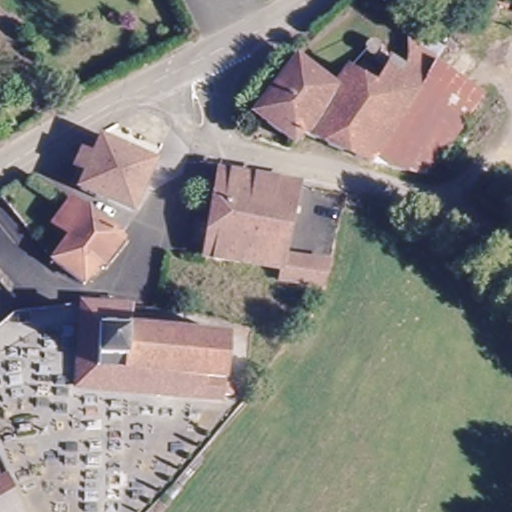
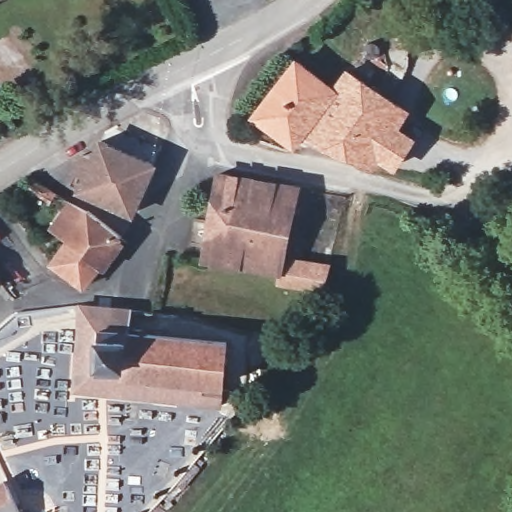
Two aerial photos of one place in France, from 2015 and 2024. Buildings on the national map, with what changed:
unchanged [(372,160),(300,131),(285,146),(232,128),(295,51),(332,81),(346,64),(372,81),(384,60),(378,41),(404,38),(431,55),(447,31),(496,64),(429,173),(372,160)]
unchanged [(122,206),(69,180),(99,137),(146,156),(122,206)]
unchanged [(280,250),(277,265),(199,252),(200,240),(207,214),(215,166),(294,179),(280,250)]
unchanged [(57,264),(70,243),(58,232),(83,202),(124,235),(99,265),(83,283),(57,264)]
unchanged [(319,283),(274,275),(277,265),(280,250),(329,257),(319,283)]
unchanged [(124,336),(96,335),(93,373),(153,380),(151,400),(71,391),(78,306),(125,310),(124,336)]
unchanged [(222,343),(219,406),(151,400),(153,380),(93,373),(96,335),(124,336),(222,343)]
unchanged [(0,492),(6,489),(17,512),(0,512),(0,492)]

